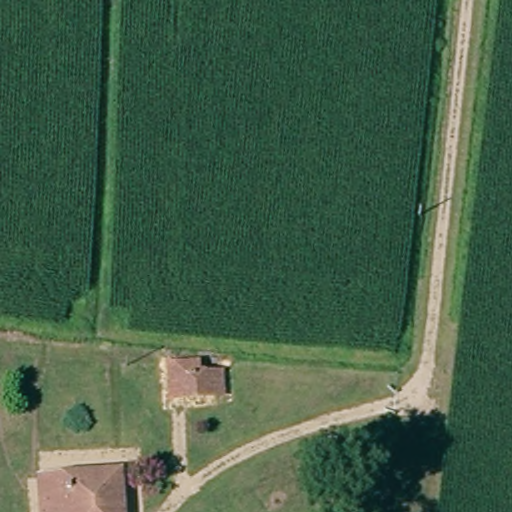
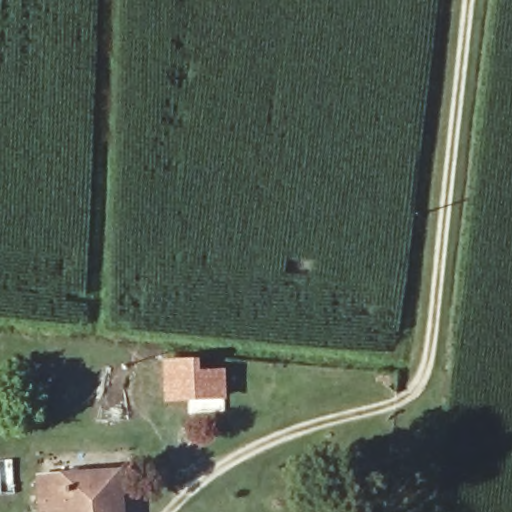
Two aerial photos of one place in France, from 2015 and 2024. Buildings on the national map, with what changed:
unchanged [(224,394),(170,398),(166,363),(197,361),(198,373),(221,371),(224,394)]
unchanged [(41,477),(118,471),(121,512),(42,512),(41,477)]

